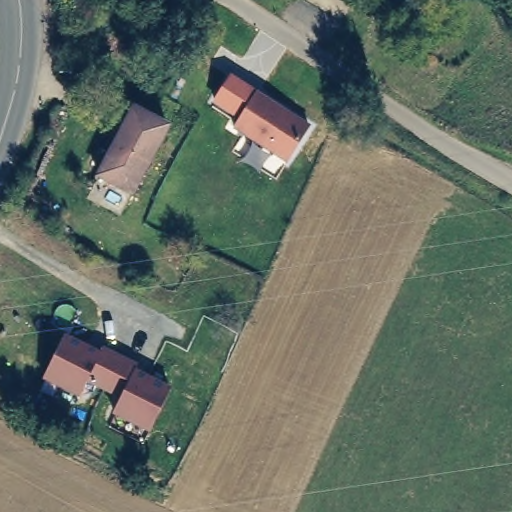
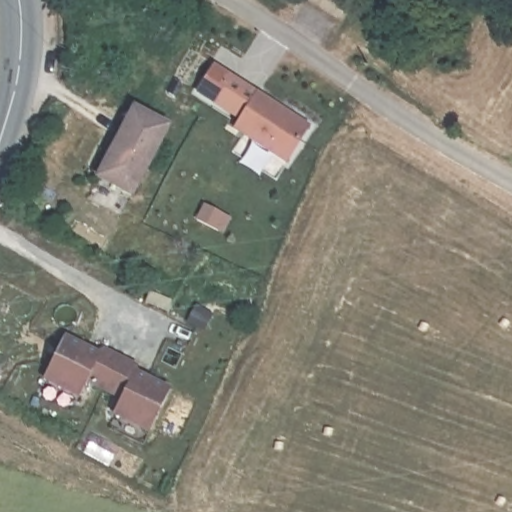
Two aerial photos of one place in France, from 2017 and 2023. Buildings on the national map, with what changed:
unchanged [(311,125),(287,163),(231,129),(238,120),(212,103),(230,76),(311,125)]
unchanged [(136,197),(101,179),(137,110),(170,129),(136,197)]
unchanged [(67,334),(101,351),(103,345),(140,363),(138,370),(174,388),(152,432),(115,414),(121,401),(90,383),(82,397),(46,379),(67,334)]

